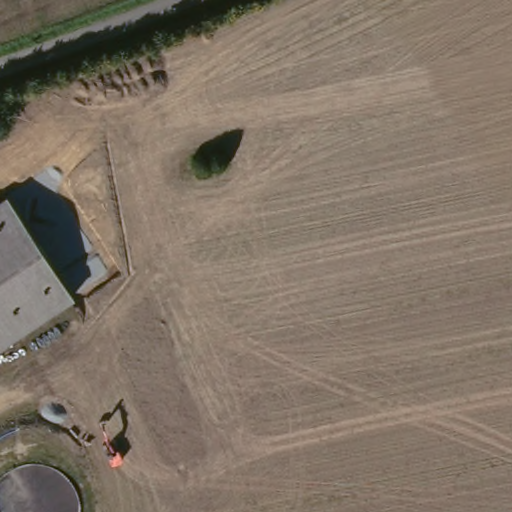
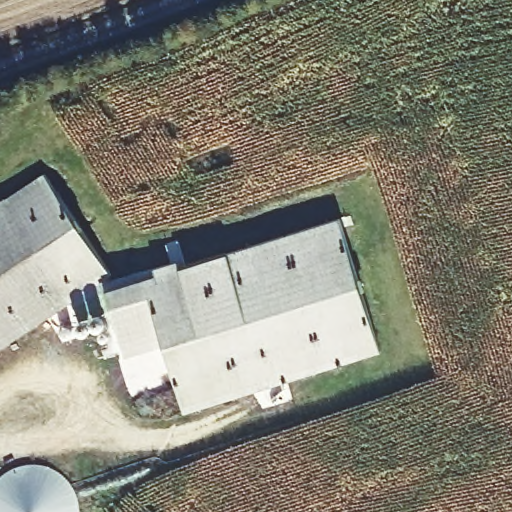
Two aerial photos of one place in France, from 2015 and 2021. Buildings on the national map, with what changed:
new [(45,175),(111,275),(107,278),(109,281),(139,272),(155,268),(185,258),(187,264),(228,252),(339,218),(379,351),(186,411),(165,343),(125,356),(107,289),(72,302),(75,300),(9,198),(45,175)]
unchanged [(0,349),(0,204),(9,198),(75,300),(0,349)]

